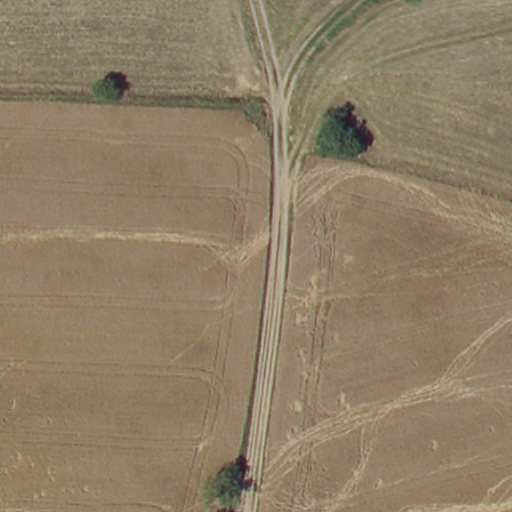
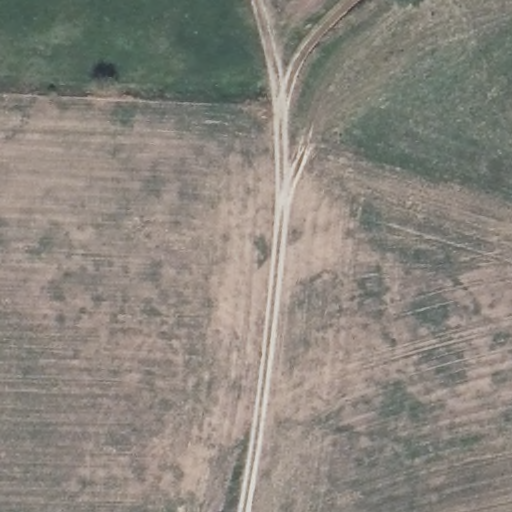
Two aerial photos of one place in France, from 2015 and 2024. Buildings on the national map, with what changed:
[]

